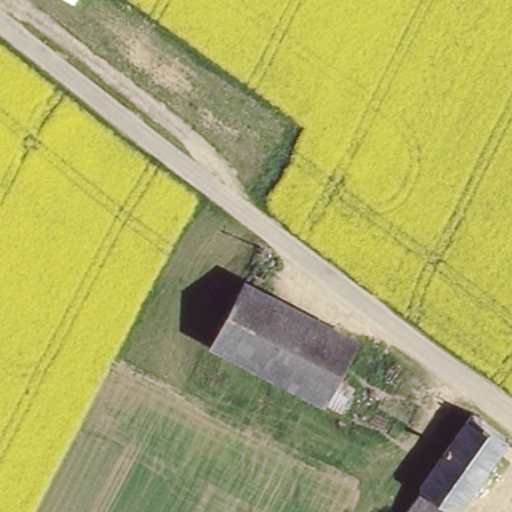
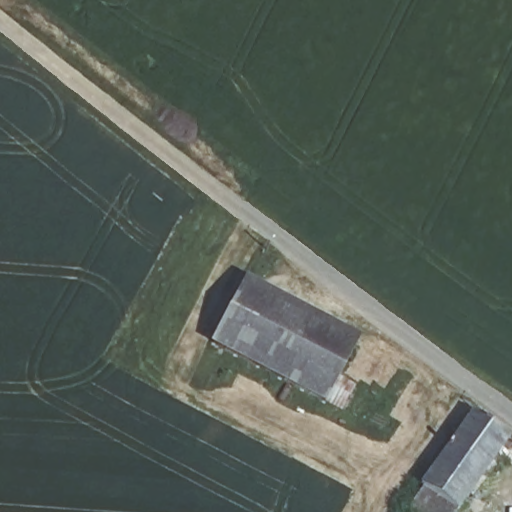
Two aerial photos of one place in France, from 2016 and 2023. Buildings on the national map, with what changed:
unchanged [(361,334),(326,399),(213,346),(246,276),(361,334)]
unchanged [(426,488),(474,408),(512,433),(512,434),(464,511),(426,488)]

